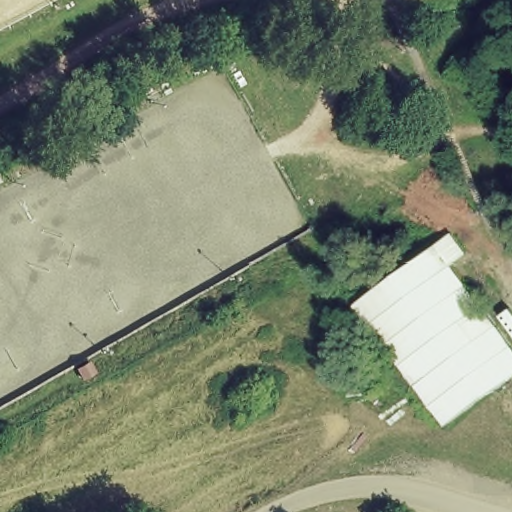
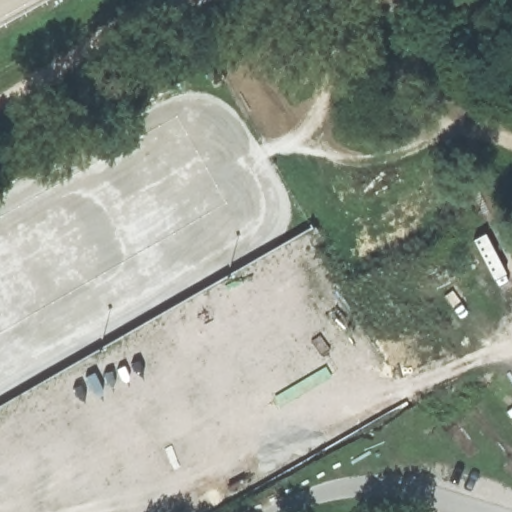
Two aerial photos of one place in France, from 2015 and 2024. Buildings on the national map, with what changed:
demolished [(473,249),(454,264),(512,345),(512,383),(444,428),(355,304),(455,232),(473,249)]

